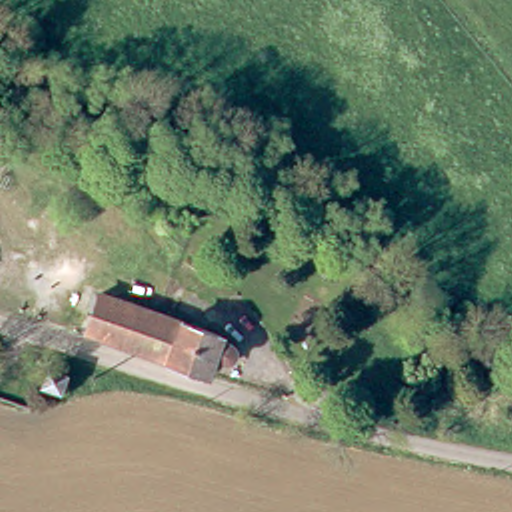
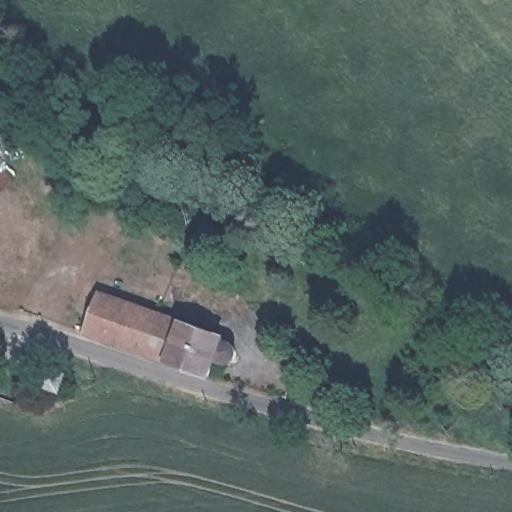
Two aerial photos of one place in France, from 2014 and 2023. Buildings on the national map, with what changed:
unchanged [(93,328),(107,288),(238,326),(238,330),(248,333),(250,337),(250,341),(247,344),(245,347),(232,344),(227,364),(93,328)]

